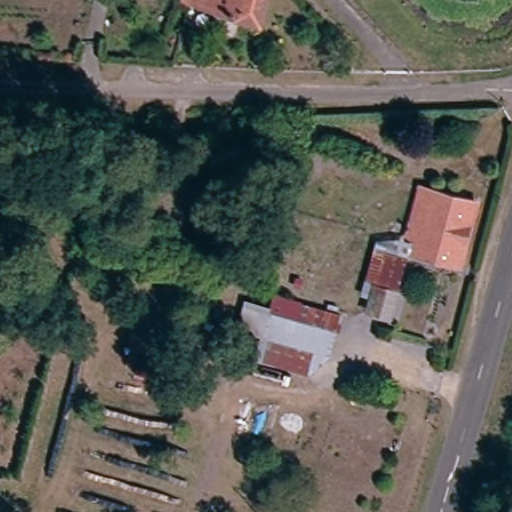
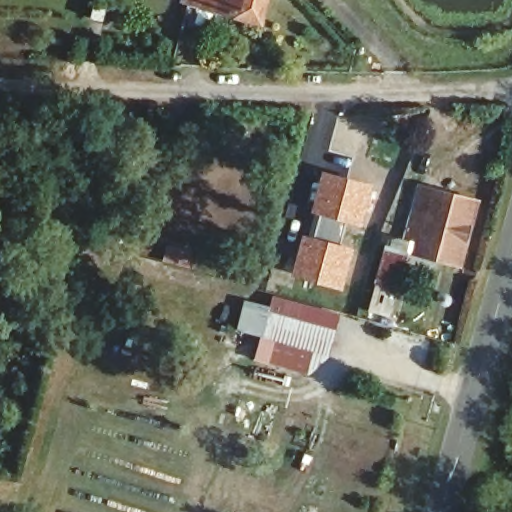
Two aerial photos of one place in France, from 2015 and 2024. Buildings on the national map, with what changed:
unchanged [(191,9),(182,7),(184,0),(262,0),(255,25),(191,9)]
new [(313,216),(308,215),(321,170),(382,185),(365,231),(347,225),(342,243),(308,234),(313,216)]
unchanged [(418,252),(420,240),(406,236),(418,189),(472,202),(470,223),(473,225),(469,238),(464,239),(457,263),(418,252)]
new [(302,232),(308,234),(342,243),(357,247),(342,292),(290,277),(302,232)]
unchanged [(394,342),(385,346),(377,337),(375,325),(375,324),(383,290),(373,287),(383,246),(393,249),(410,254),(393,321),(385,320),(383,326),(397,330),(394,342)]
unchanged [(334,317),(323,355),(266,340),(274,302),(334,317)]

